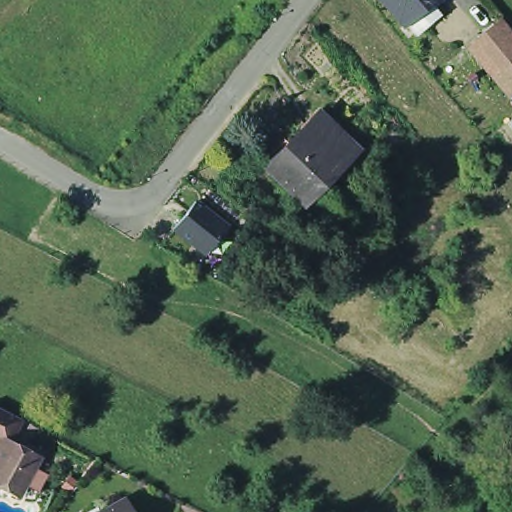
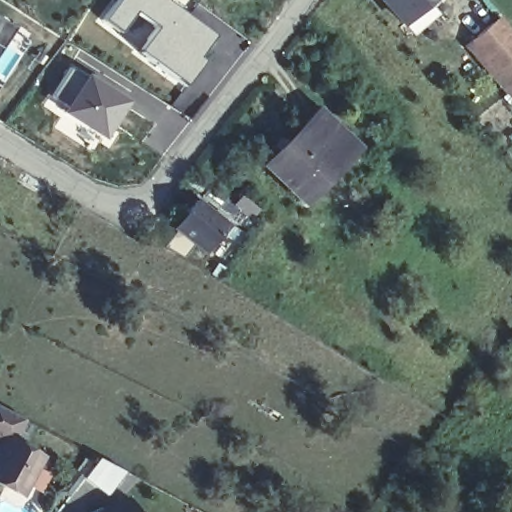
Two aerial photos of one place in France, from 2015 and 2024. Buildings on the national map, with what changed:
new [(114,0),(163,0),(213,36),(197,57),(203,62),(184,87),(136,51),(98,20),(114,0)]
unchanged [(409,21),(391,0),(434,0),(443,11),(430,22),(419,32),(409,21)]
unchanged [(504,16),(512,25),(512,90),(511,91),(470,44),(482,34),(497,22),(501,17),(504,16)]
new [(0,45),(0,20),(11,28),(0,45)]
new [(48,96),(70,65),(85,74),(125,101),(100,139),(60,111),(62,107),(48,96)]
unchanged [(358,140),(307,193),(271,160),(323,107),(358,140)]
unchanged [(215,247),(205,255),(187,233),(199,225),(215,247)]
unchanged [(0,422),(22,432),(22,433),(11,455),(6,452),(4,456),(0,454),(0,422)]
unchanged [(35,482),(47,488),(38,505),(26,497),(22,506),(0,494),(0,464),(4,456),(6,452),(11,455),(41,470),(35,482)]
unchanged [(105,512),(128,498),(137,512),(105,512)]

